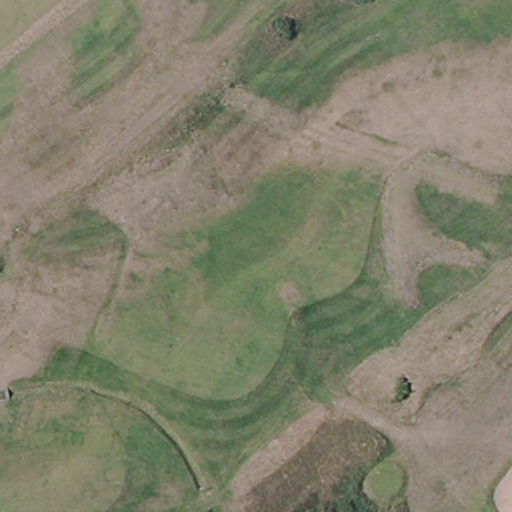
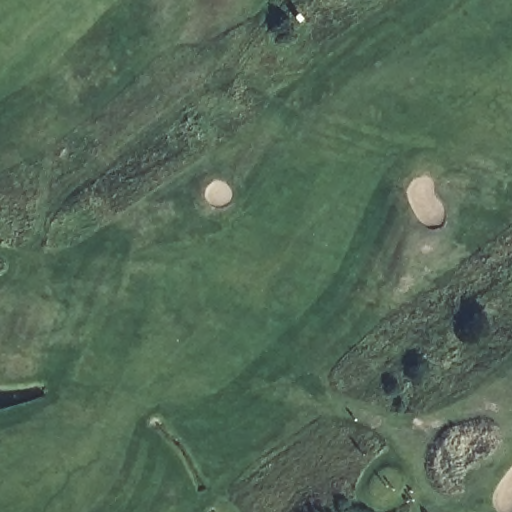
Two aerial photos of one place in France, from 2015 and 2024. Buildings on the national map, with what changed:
[]

